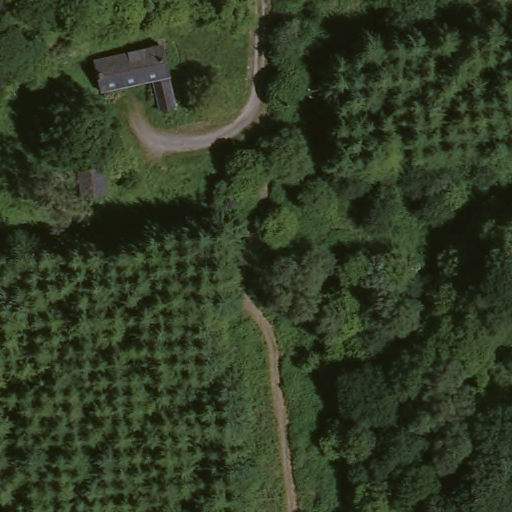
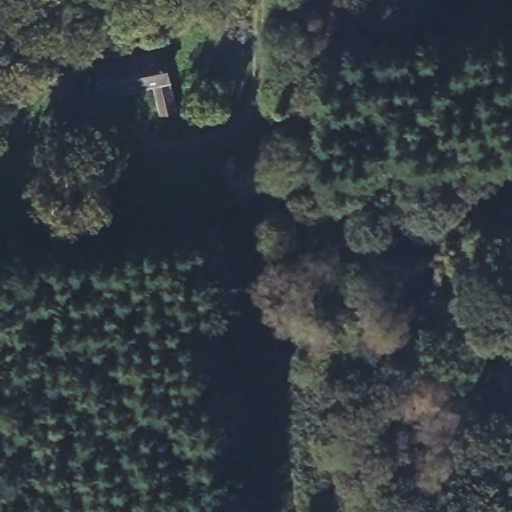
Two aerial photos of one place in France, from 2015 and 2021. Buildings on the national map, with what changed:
unchanged [(99,62),(164,43),(181,106),(165,110),(156,80),(111,93),(108,93),(99,62)]
unchanged [(78,155),(101,151),(102,150),(108,191),(84,194),(78,155)]

